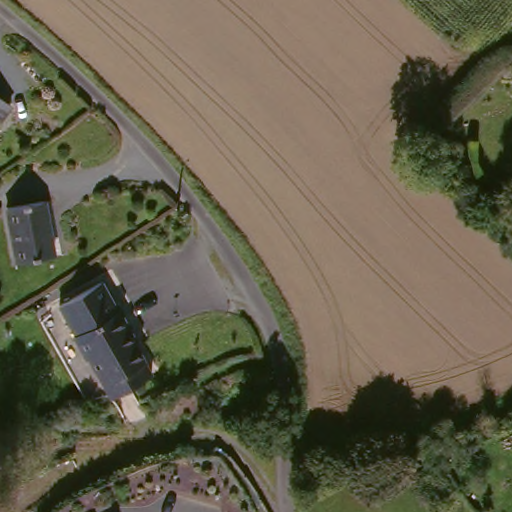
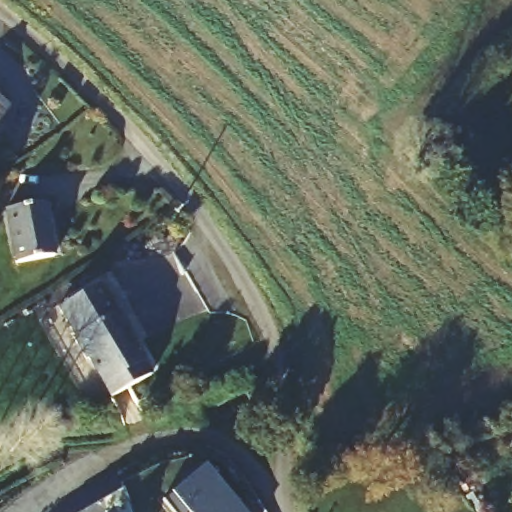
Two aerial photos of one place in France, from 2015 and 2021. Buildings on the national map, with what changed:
unchanged [(0,122),(0,99),(10,108),(0,122)]
unchanged [(8,210),(44,201),(56,256),(20,265),(8,210)]
unchanged [(130,331),(128,332),(154,378),(113,401),(90,361),(88,362),(75,340),(77,338),(60,310),(103,285),(130,331)]
new [(173,512),(163,500),(171,493),(207,465),(247,512),(173,512)]

